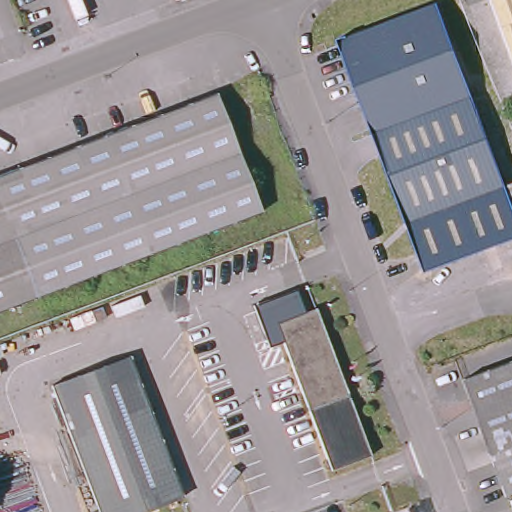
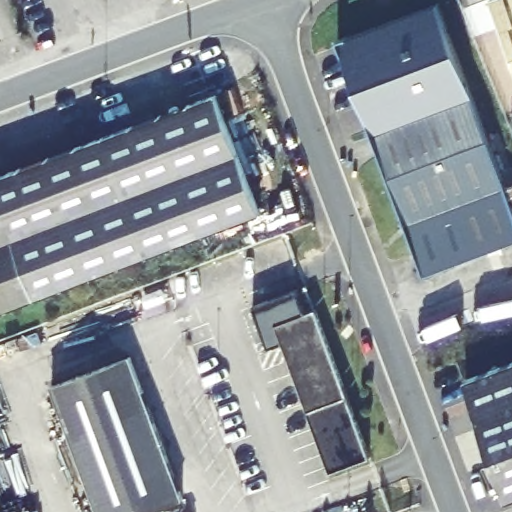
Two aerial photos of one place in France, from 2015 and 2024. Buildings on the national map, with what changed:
unchanged [(431,0),(439,0),(503,181),(512,179),(512,239),(422,270),(339,35),(431,0)]
unchanged [(492,0),(512,0),(512,55),(492,0)]
unchanged [(218,93),(262,208),(107,266),(62,151),(218,93)]
unchanged [(0,306),(0,175),(62,151),(107,266),(0,306)]
unchanged [(313,302),(369,451),(328,467),(273,318),(313,302)]
unchanged [(185,496),(144,512),(98,512),(52,383),(130,352),(185,496)]
unchanged [(512,357),(512,490),(508,491),(462,374),(512,357)]

